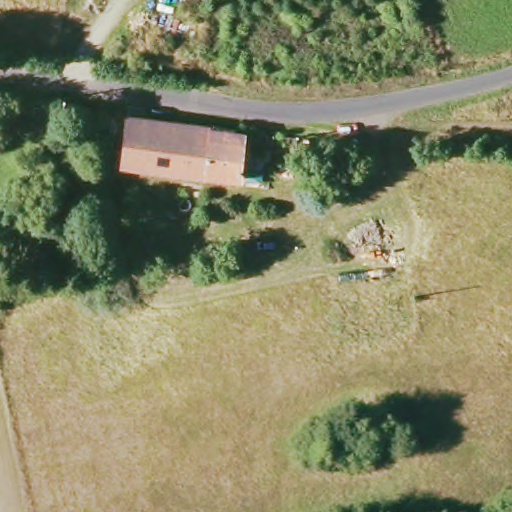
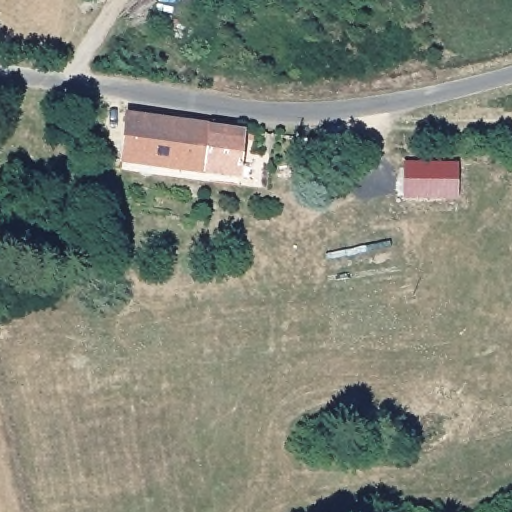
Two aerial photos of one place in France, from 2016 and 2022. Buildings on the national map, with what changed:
unchanged [(129,114),(246,131),(241,180),(123,164),(129,114)]
new [(407,170),(457,171),(456,201),(406,200),(407,170)]

